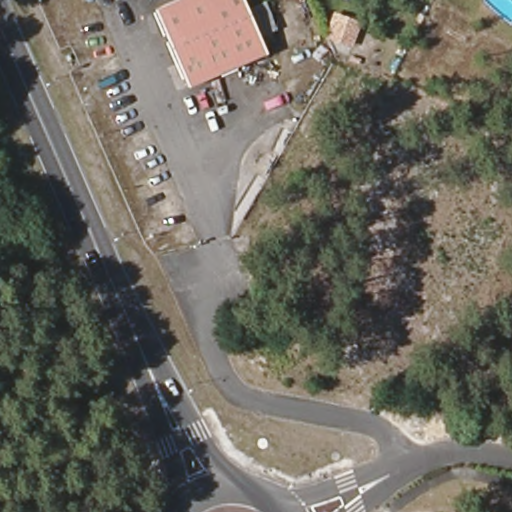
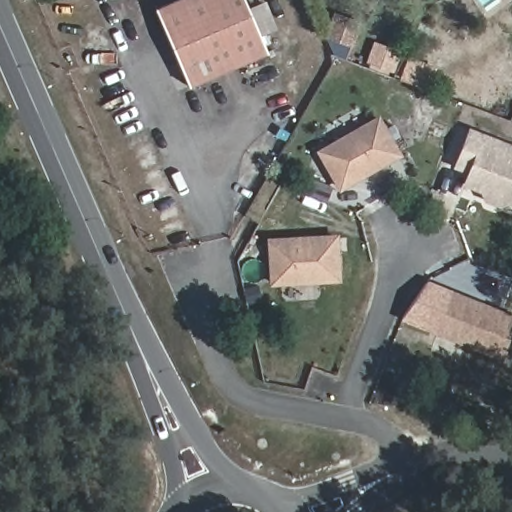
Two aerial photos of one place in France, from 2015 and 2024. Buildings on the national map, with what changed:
unchanged [(190,0),(244,0),(267,55),(190,90),(157,14),(190,0)]
new [(339,193),(317,150),(380,114),(403,155),(339,193)]
new [(487,202),(483,191),(467,183),(472,172),(458,166),(471,132),(512,148),(512,204),(501,206),(487,202)]
new [(341,281),(273,285),(269,238),(337,233),(341,281)]
new [(453,289),(512,315),(512,333),(500,360),(435,334),(453,289)]

